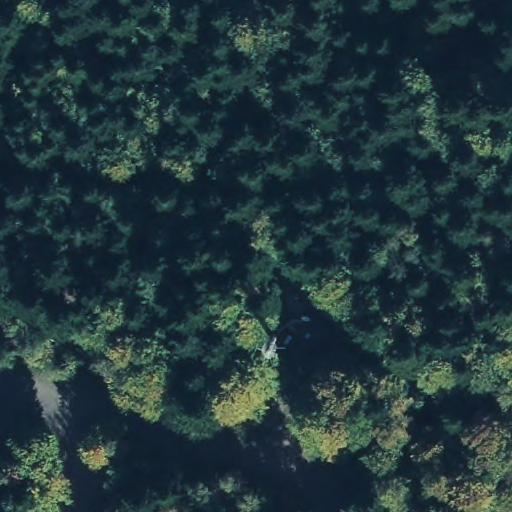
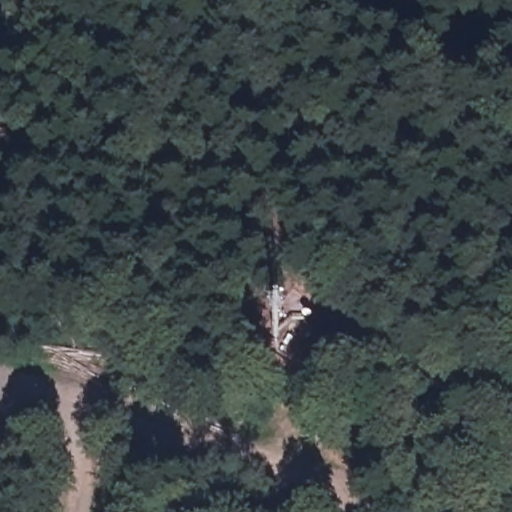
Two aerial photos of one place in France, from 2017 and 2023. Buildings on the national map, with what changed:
unchanged [(295,323),(295,322),(294,322),(293,322),(293,321),(292,320),(292,319),(292,318),(291,317),(291,316),(292,315),(292,314),(292,313),(293,312),(294,312),(295,311),(295,310),(296,310),(297,310),(298,310),(299,310),(300,310),(301,310),(302,311),(303,311),(303,312),(304,312),(305,312),(305,313),(305,314),(305,315),(305,316),(305,317),(305,318),(305,319),(305,320),(305,321),(304,321),(303,322),(302,322),(301,323),(300,323),(299,323),(298,323),(297,323),(296,323),(295,323)]

